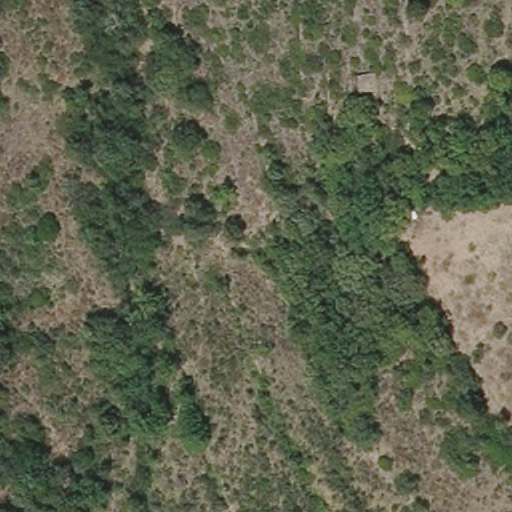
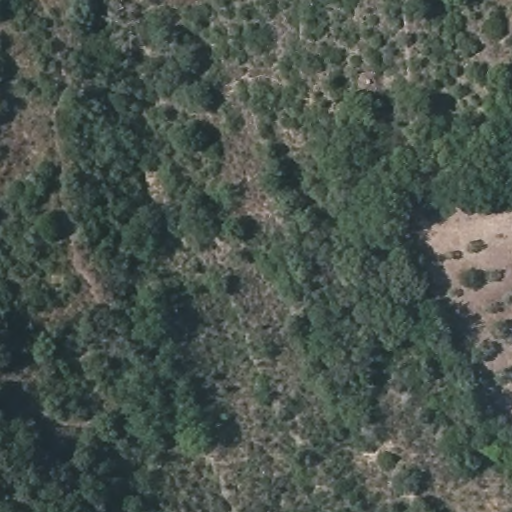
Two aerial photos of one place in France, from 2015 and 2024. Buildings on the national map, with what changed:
unchanged [(378,87),(356,87),(355,67),(378,67),(378,87)]

